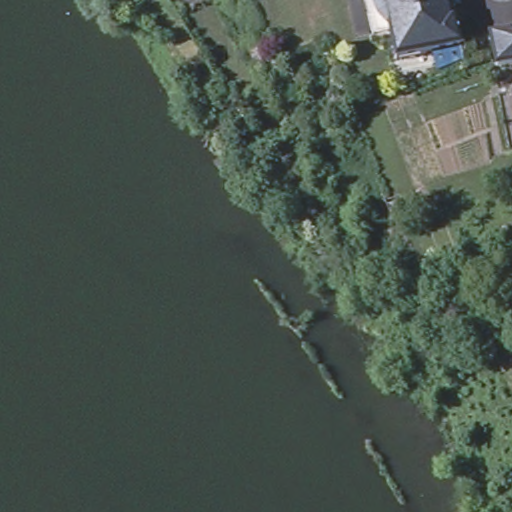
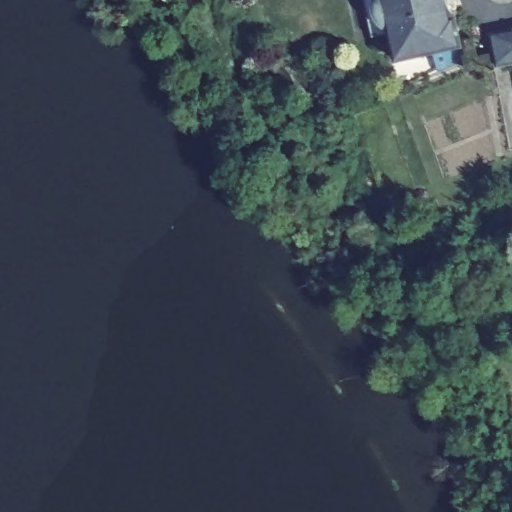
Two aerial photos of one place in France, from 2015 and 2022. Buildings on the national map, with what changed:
unchanged [(453,0),(456,9),(459,22),(462,21),(467,49),(402,64),(396,36),(379,40),(370,0),(453,0)]
unchanged [(512,35),(512,70),(507,70),(502,69),(497,38),(512,35)]
unchanged [(504,284),(512,281),(512,306),(504,284)]

